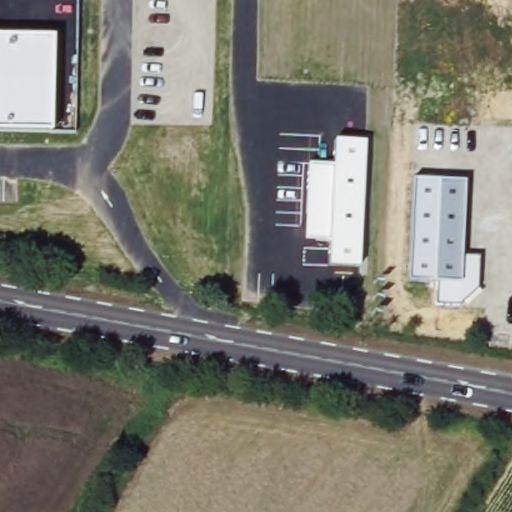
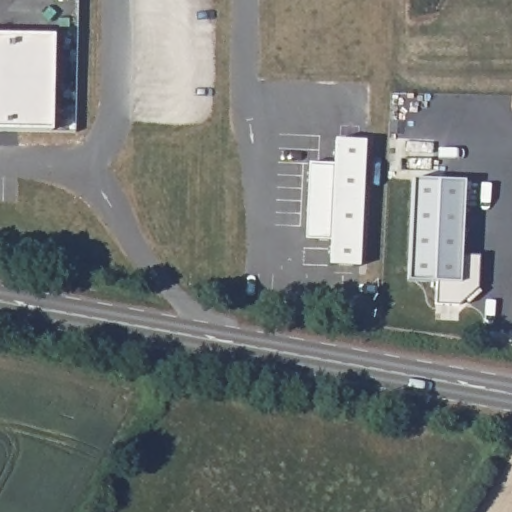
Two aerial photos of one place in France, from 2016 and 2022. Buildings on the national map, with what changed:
unchanged [(54,37),(51,131),(0,130),(0,36),(54,37)]
unchanged [(308,164),(333,165),(334,140),(366,142),(360,268),(357,267),(328,267),(330,243),(305,240),(308,164)]
unchanged [(413,180),(465,181),(462,257),(479,256),(478,289),(460,305),(436,304),(436,282),(408,280),(413,180)]

